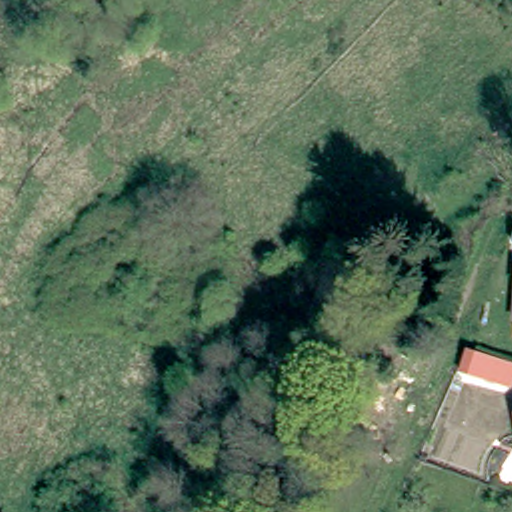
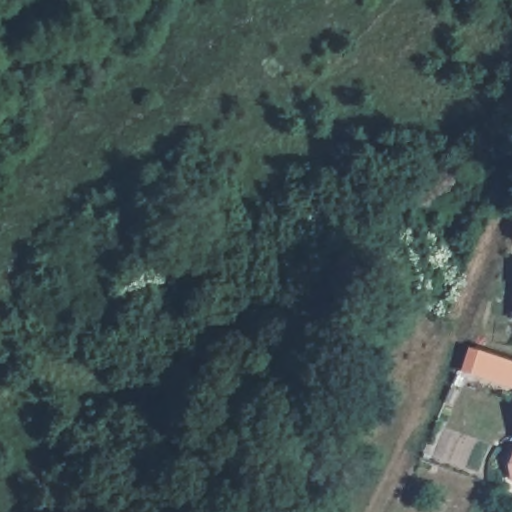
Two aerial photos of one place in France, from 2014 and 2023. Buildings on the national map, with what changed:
unchanged [(460,370),(467,347),(512,362),(512,388),(460,370)]

